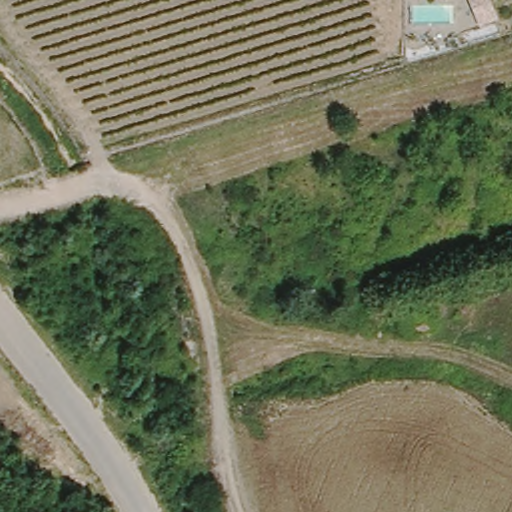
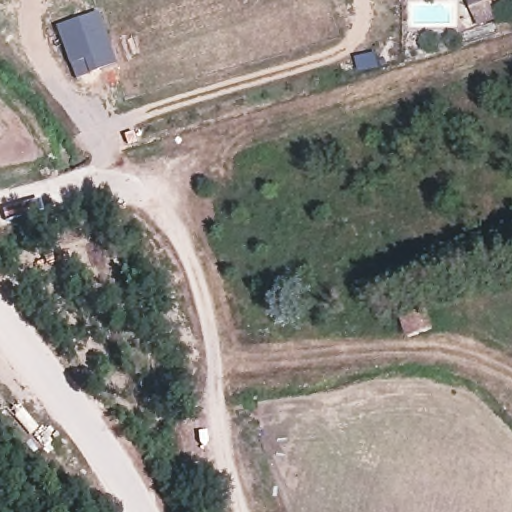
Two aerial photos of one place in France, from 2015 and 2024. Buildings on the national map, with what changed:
new [(486,0),(490,13),(475,19),(470,0),(486,0)]
new [(75,78),(57,24),(96,10),(117,62),(75,78)]
unchanged [(426,308),(431,328),(408,333),(402,315),(426,308)]

